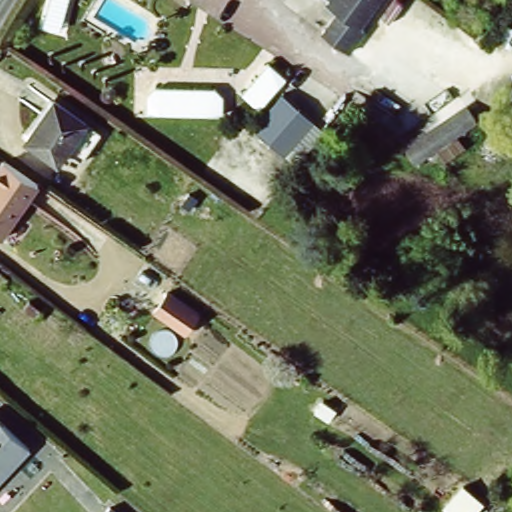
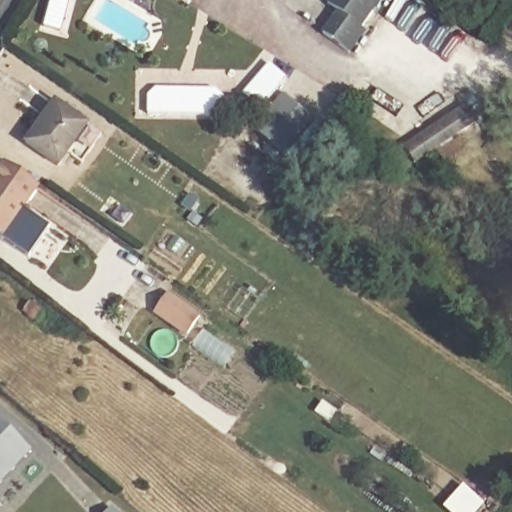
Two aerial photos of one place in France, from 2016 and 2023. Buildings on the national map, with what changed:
unchanged [(369,28),(355,57),(324,33),(339,13),(330,7),(334,0),(390,0),(369,28)]
unchanged [(219,89),(225,98),(225,113),(149,113),(147,95),(155,88),(219,89)]
unchanged [(312,119),(296,143),(265,123),(280,99),(312,119)]
unchanged [(475,102),(487,126),(419,163),(408,144),(475,102)]
unchanged [(59,166),(25,145),(51,104),(85,125),(59,166)]
unchanged [(37,188),(0,241),(0,168),(2,164),(37,188)]
unchanged [(202,315),(189,334),(154,313),(172,292),(202,315)]
unchanged [(29,456),(0,489),(0,430),(29,456)]

